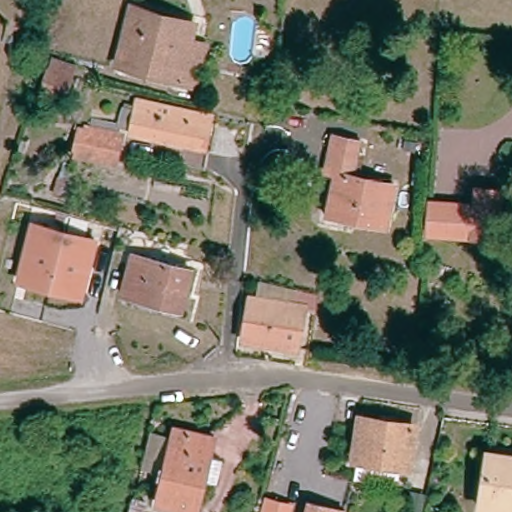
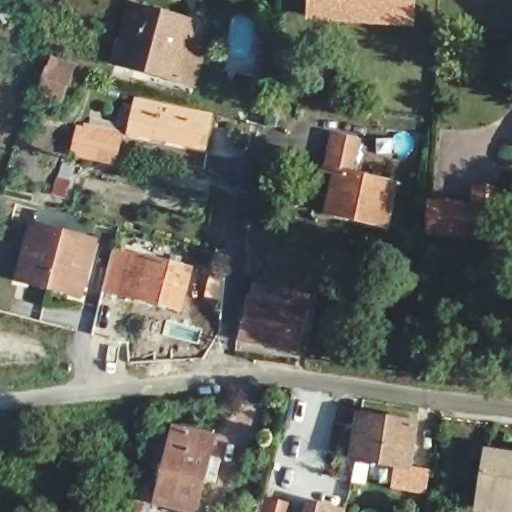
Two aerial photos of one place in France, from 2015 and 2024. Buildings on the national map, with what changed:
new [(305,0),(416,0),(413,30),(304,21),(305,0)]
unchanged [(177,86),(112,68),(126,10),(192,29),(177,86)]
unchanged [(213,35),(197,92),(177,86),(192,29),(213,35)]
unchanged [(71,76),(60,107),(38,99),(49,67),(71,76)]
unchanged [(136,109),(211,126),(204,159),(129,142),(136,109)]
unchanged [(116,171),(74,162),(79,137),(91,139),(93,130),(116,135),(114,144),(122,146),(116,171)]
unchanged [(330,201),(335,177),(325,175),(333,140),(361,146),(354,181),(395,189),(385,232),(333,220),(326,218),(330,201)]
unchanged [(54,194),(63,166),(73,168),(69,181),(71,182),(66,198),(54,194)]
unchanged [(479,214),(480,198),(505,199),(502,248),(431,243),(434,211),(479,214)]
unchanged [(70,293),(31,283),(19,280),(23,263),(32,225),(64,233),(96,240),(86,279),(82,296),(70,293)]
unchanged [(191,275),(181,316),(121,300),(132,258),(191,275)]
unchanged [(319,295),(316,313),(305,309),(305,306),(256,297),(259,282),(319,295)]
unchanged [(297,349),(242,340),(250,296),(305,306),(297,349)]
unchanged [(369,482),(372,465),(355,462),(361,422),(414,429),(408,470),(400,469),(397,486),(369,482)]
unchanged [(163,474),(141,469),(150,432),(172,437),(163,474)]
unchanged [(215,442),(209,465),(222,468),(217,490),(203,486),(197,512),(176,512),(155,507),(173,432),(215,442)]
unchanged [(512,512),(478,512),(487,458),(512,462),(512,512)]
unchanged [(293,512),(261,512),(264,496),(295,504),(293,512)]
unchanged [(145,501),(143,512),(130,512),(134,498),(145,501)]
unchanged [(345,512),(304,512),(307,500),(345,510),(345,512)]
unchanged [(418,512),(404,512),(405,509),(418,512)]

